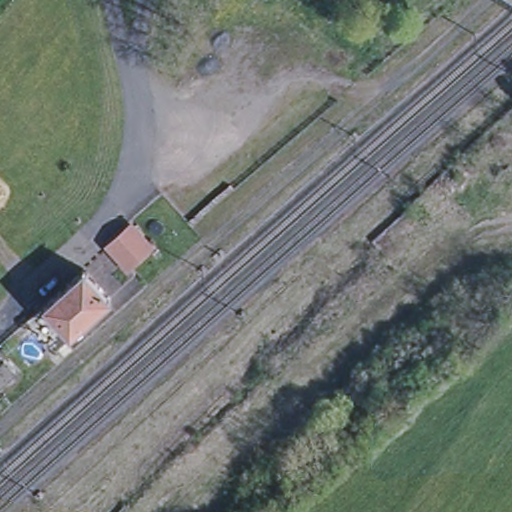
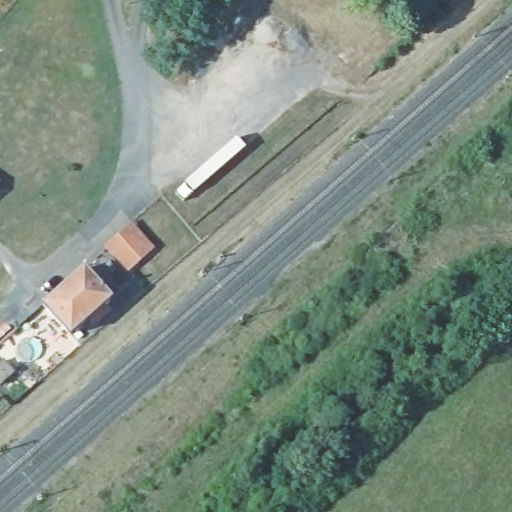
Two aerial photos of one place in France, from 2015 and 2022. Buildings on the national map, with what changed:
unchanged [(153,250),(125,273),(102,247),(130,222),(153,250)]
unchanged [(79,274),(106,304),(66,338),(40,307),(79,274)]
unchanged [(0,383),(0,362),(10,374),(0,383)]

